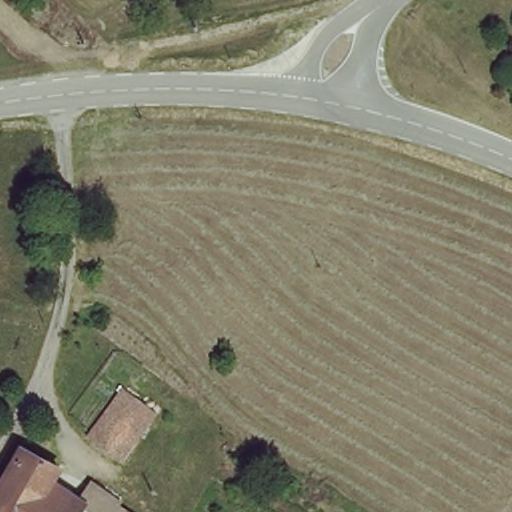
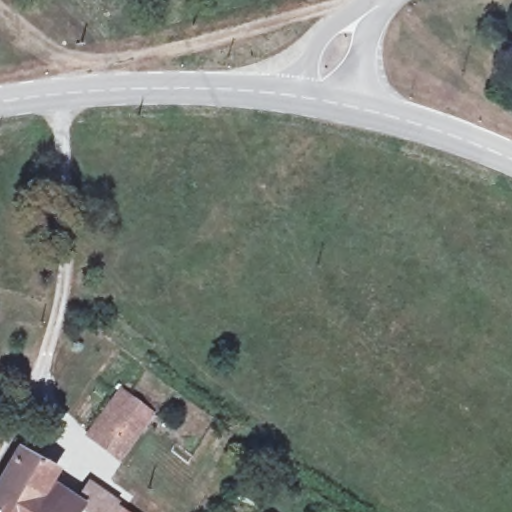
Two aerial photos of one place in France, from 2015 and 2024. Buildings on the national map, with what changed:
unchanged [(86,430),(118,391),(132,396),(140,385),(156,403),(138,428),(143,436),(127,461),(86,430)]
unchanged [(49,489),(35,512),(3,512),(0,510),(0,482),(21,445),(61,468),(49,489)]
unchanged [(75,506),(71,512),(35,512),(49,489),(75,506)]
unchanged [(3,512),(0,512),(0,510),(3,512)]

